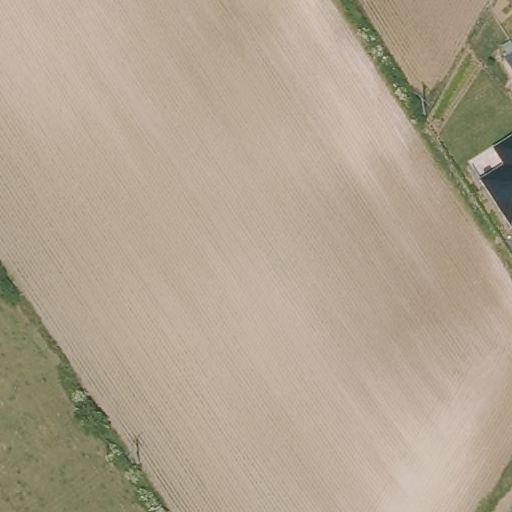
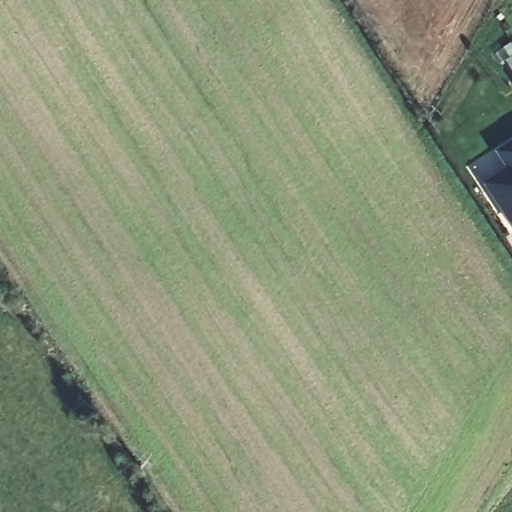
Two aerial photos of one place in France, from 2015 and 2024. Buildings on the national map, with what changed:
unchanged [(506,59),(512,55),(512,69),(506,59)]
unchanged [(483,185),(507,170),(496,153),(512,143),(512,229),(483,185)]

